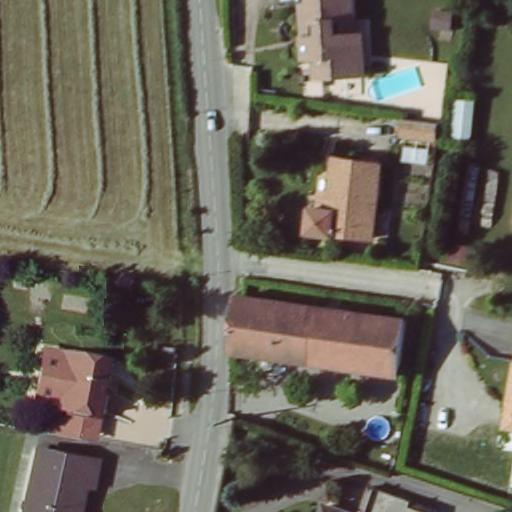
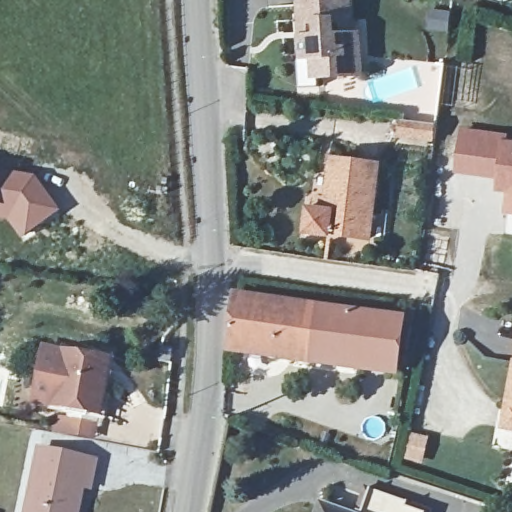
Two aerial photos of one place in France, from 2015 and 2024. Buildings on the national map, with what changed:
unchanged [(330,22),(330,37),(355,37),(355,57),(351,57),(350,77),(309,77),(310,57),(297,57),(298,37),(313,37),(314,22),(296,21),(297,4),(303,4),(303,0),(346,0),(346,22),(330,22)]
unchanged [(401,119),(435,123),(432,138),(399,134),(401,119)]
new [(508,134),(507,139),(512,140),(512,216),(502,215),(505,194),(494,192),(495,180),(452,174),(459,126),(508,134)]
unchanged [(330,160),(375,166),(372,188),(368,223),(365,241),(320,234),(325,199),(330,160)]
new [(37,179),(62,212),(24,241),(8,221),(0,220),(0,172),(37,179)]
unchanged [(238,297),(278,302),(334,311),(388,318),(397,320),(395,337),(390,372),(369,370),(313,362),(255,354),(222,350),(224,324),(228,296),(238,297)]
unchanged [(74,353),(105,358),(101,384),(96,412),(69,407),(55,405),(60,376),(60,370),(56,369),(59,351),(74,353)]
unchanged [(497,431),(512,356),(512,434),(497,431)]
unchanged [(78,512),(28,512),(30,503),(36,466),(38,453),(51,456),(93,463),(89,491),(82,490),(79,507),(78,511),(78,512)]
unchanged [(344,512),(320,512),(323,505),(344,512)]

